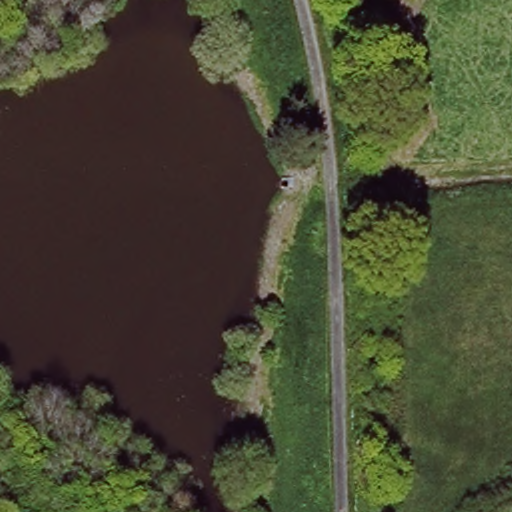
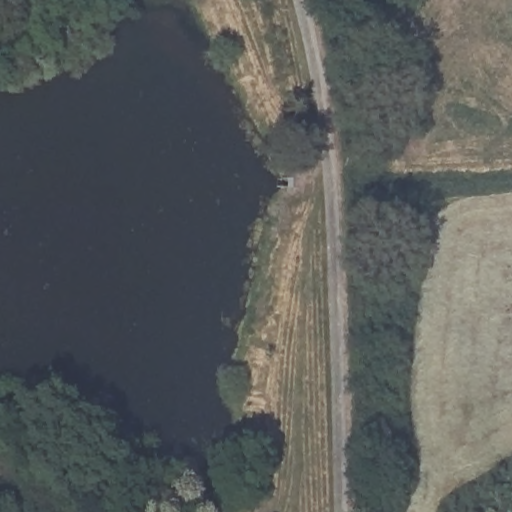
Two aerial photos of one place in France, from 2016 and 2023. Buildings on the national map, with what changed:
[]

